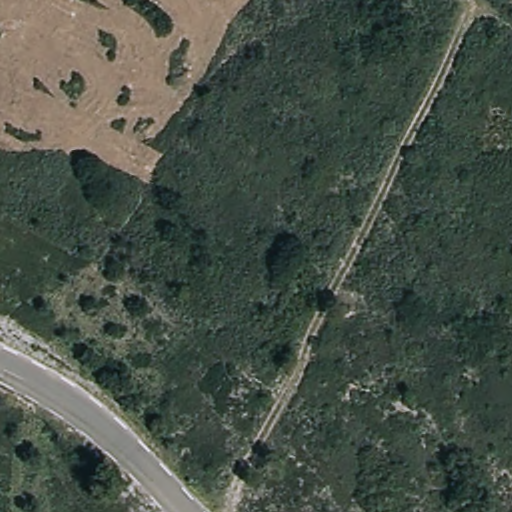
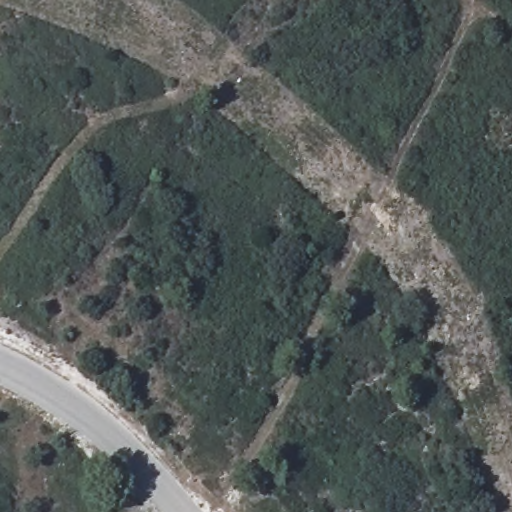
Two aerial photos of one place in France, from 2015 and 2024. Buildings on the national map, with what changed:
[]

